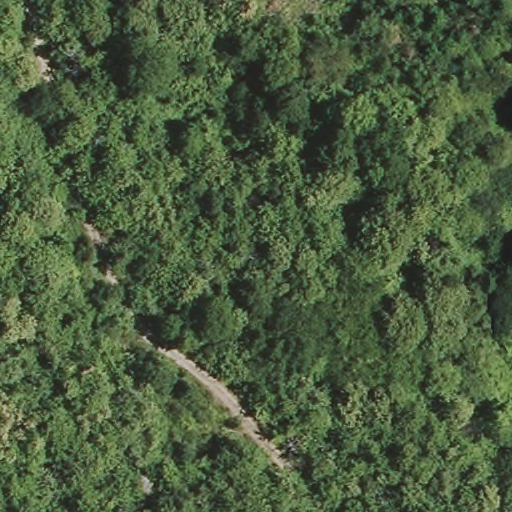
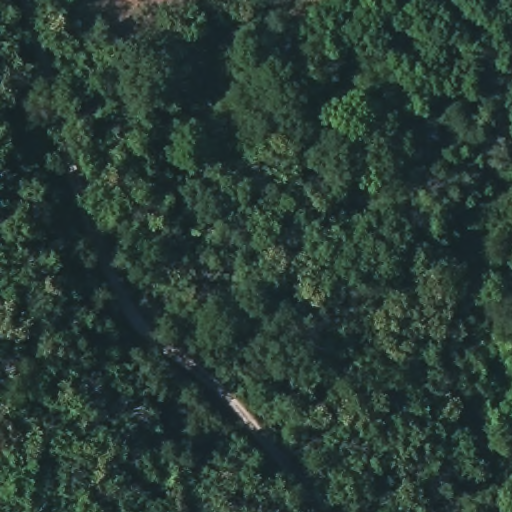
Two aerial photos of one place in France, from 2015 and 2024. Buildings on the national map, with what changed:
unchanged [(145,495),(133,486),(142,472),(157,484),(145,495)]

